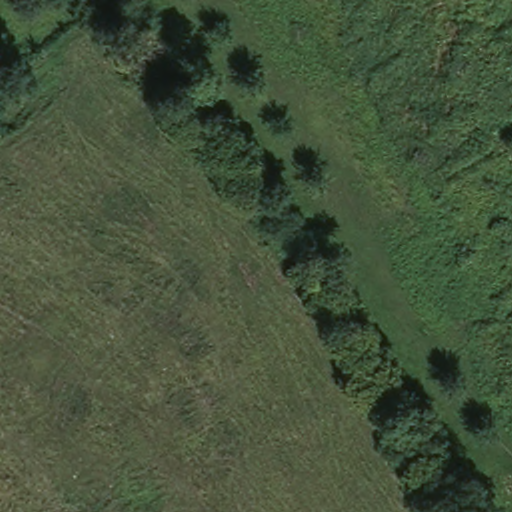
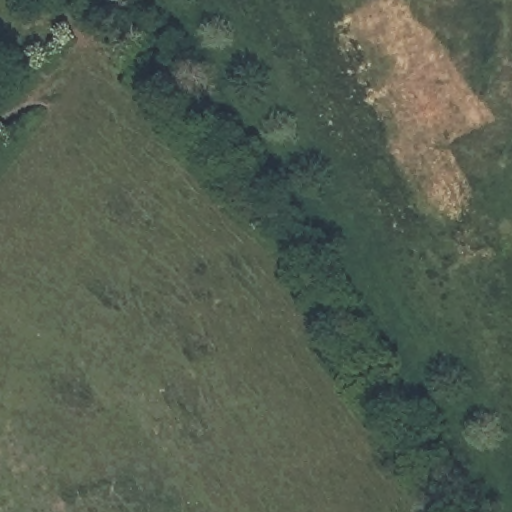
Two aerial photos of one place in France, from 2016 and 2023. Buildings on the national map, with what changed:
[]

